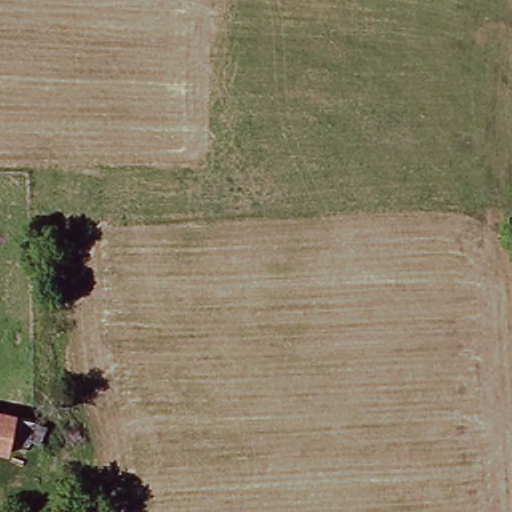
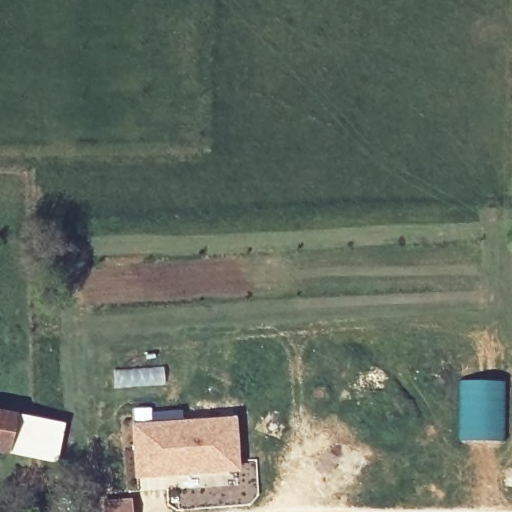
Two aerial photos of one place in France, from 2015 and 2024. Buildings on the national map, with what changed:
new [(457,380),(506,381),(505,442),(457,440),(457,380)]
new [(132,424),(236,418),(239,471),(136,480),(132,424)]
unchanged [(0,421),(19,425),(10,463),(0,460),(0,421)]
unchanged [(10,463),(19,425),(47,431),(39,469),(10,463)]

